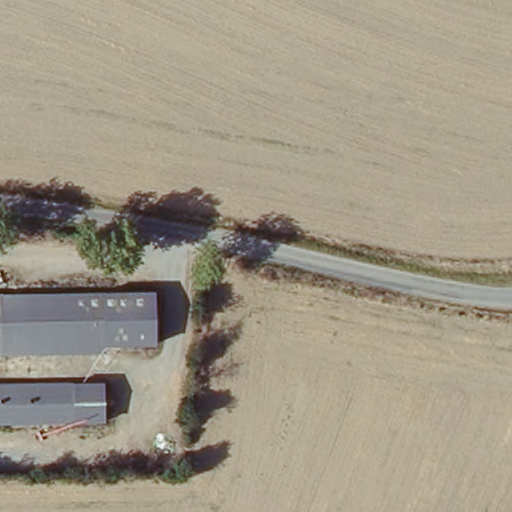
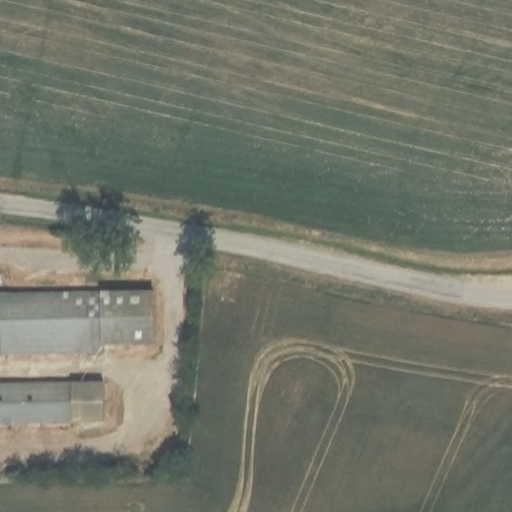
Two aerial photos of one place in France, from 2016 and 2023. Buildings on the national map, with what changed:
unchanged [(154,293),(157,350),(110,352),(106,295),(154,293)]
unchanged [(106,295),(110,352),(0,356),(0,299),(106,295)]
unchanged [(104,383),(107,420),(68,421),(65,384),(104,383)]
unchanged [(65,384),(68,421),(0,424),(0,387),(65,384)]

